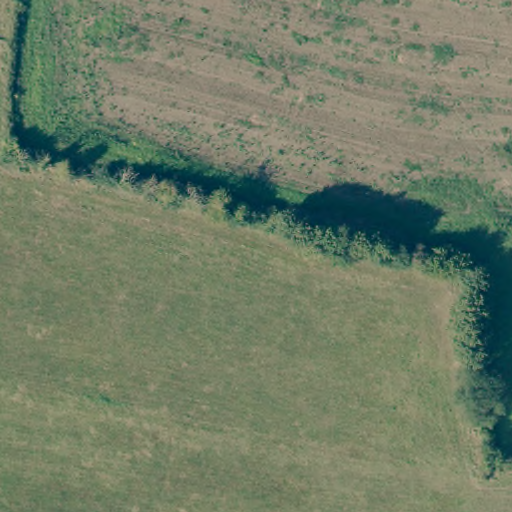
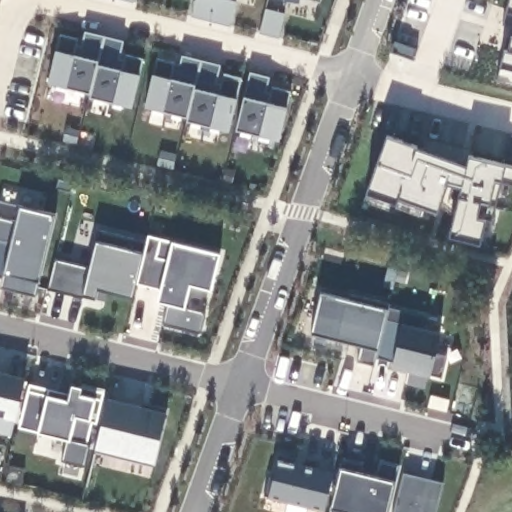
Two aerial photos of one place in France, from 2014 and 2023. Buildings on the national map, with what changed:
new [(299,2),(293,0),(300,0),(299,2)]
new [(321,2),(315,0),(321,0),(321,2)]
new [(510,0),(512,0),(512,12),(507,11),(510,0)]
new [(139,74),(132,107),(89,97),(90,93),(47,83),(56,50),(62,36),(77,40),(77,45),(82,46),(85,32),(104,36),(97,62),(96,65),(121,71),(126,56),(142,60),(139,74)]
new [(505,50),(508,51),(511,37),(512,37),(512,84),(497,81),(501,67),(505,50)]
new [(237,99),(229,132),(187,121),(189,117),(144,107),(152,74),(158,59),(180,64),(181,56),(201,61),(194,85),(194,89),(219,95),(224,74),(242,79),(237,99)]
new [(237,130),(245,97),(251,73),(268,78),(265,92),(272,93),(273,88),(290,92),(279,140),(237,130)]
new [(494,180),(489,204),(480,202),(476,217),(485,220),(480,244),(449,237),(462,186),(447,183),(436,213),(398,200),(397,204),(366,192),(388,137),(467,167),(469,157),(504,165),(512,167),(512,185),(501,182),(494,180)]
new [(39,281),(34,297),(0,290),(0,286),(2,280),(0,279),(0,202),(21,209),(55,217),(39,281)]
new [(56,262),(89,269),(96,243),(98,231),(147,244),(149,236),(172,242),(220,254),(211,290),(189,285),(184,307),(204,313),(199,333),(164,323),(167,303),(158,301),(162,289),(136,283),(132,298),(96,288),(94,298),(82,296),(49,290),(56,262)]
new [(321,295),(347,301),(350,295),(389,305),(388,311),(423,317),(421,327),(440,332),(436,354),(446,358),(441,377),(431,375),(430,377),(392,367),(392,362),(376,359),(374,366),(357,362),(360,346),(312,335),(321,295)]
new [(15,421),(11,437),(0,434),(0,372),(25,377),(15,421)]
new [(29,385),(69,393),(71,386),(82,388),(82,382),(105,388),(97,423),(91,422),(86,444),(91,445),(85,466),(62,461),(67,440),(39,432),(19,427),(29,385)]
new [(154,463),(152,467),(96,453),(96,449),(109,398),(166,412),(154,463)]
new [(268,475),(273,476),(278,454),(296,458),(294,462),(333,472),(324,510),(263,495),(268,475)]
new [(362,466),(377,469),(379,458),(400,463),(388,512),(329,512),(342,456),(363,461),(362,466)]
new [(415,473),(443,480),(435,512),(393,512),(399,487),(403,471),(415,473)]

